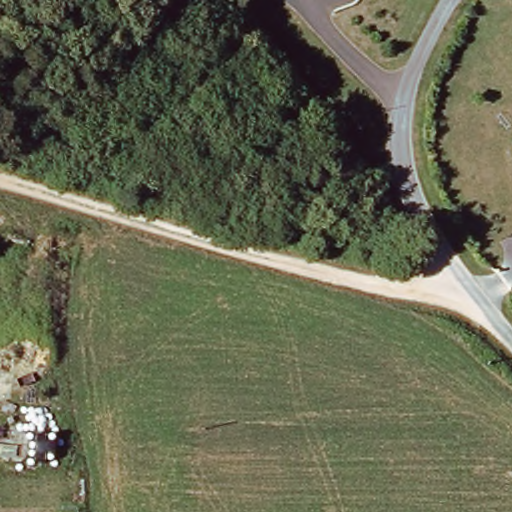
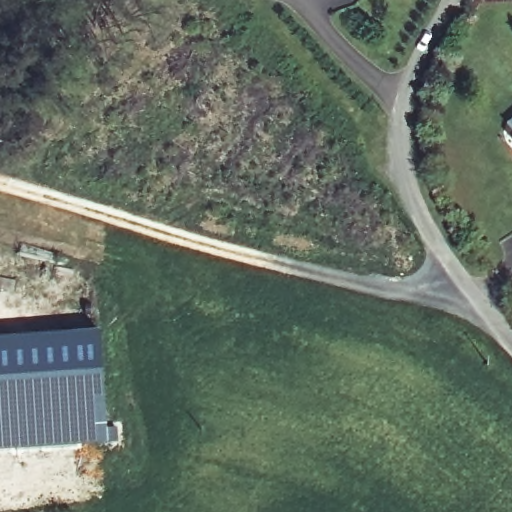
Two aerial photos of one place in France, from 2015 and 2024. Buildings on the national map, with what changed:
new [(106,447),(0,454),(0,340),(100,334),(106,447)]

